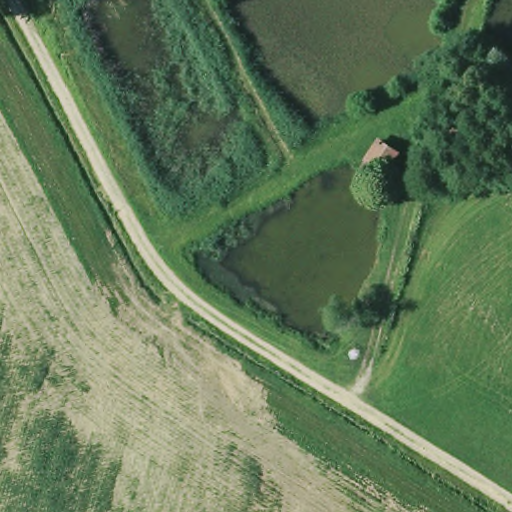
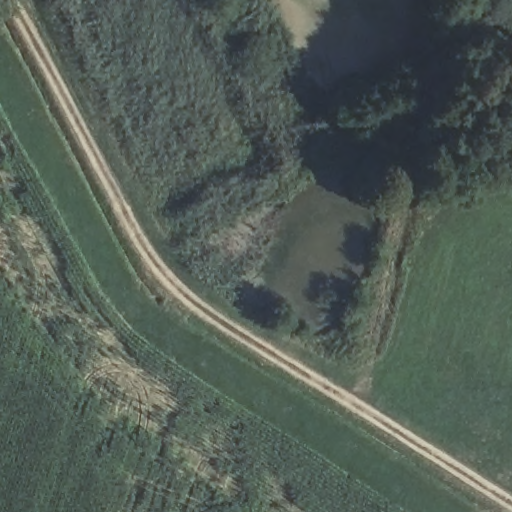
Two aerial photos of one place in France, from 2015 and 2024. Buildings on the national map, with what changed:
unchanged [(363,157),(375,137),(393,148),(380,168),(375,177),(357,166),(363,157)]

